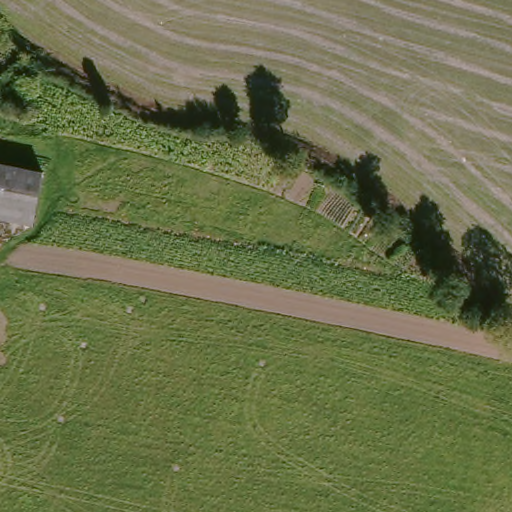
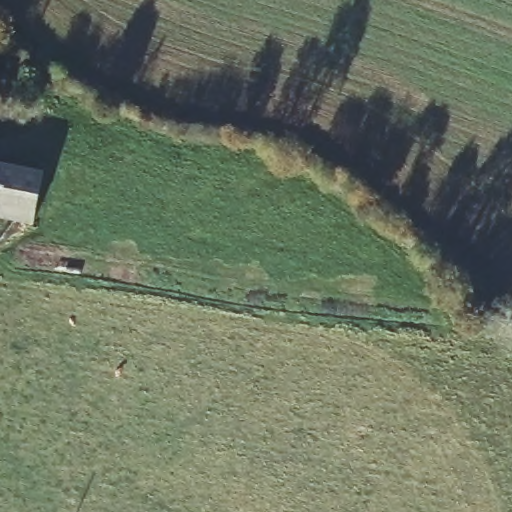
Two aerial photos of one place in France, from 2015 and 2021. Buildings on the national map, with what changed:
unchanged [(29,217),(0,214),(0,172),(33,175),(29,217)]

